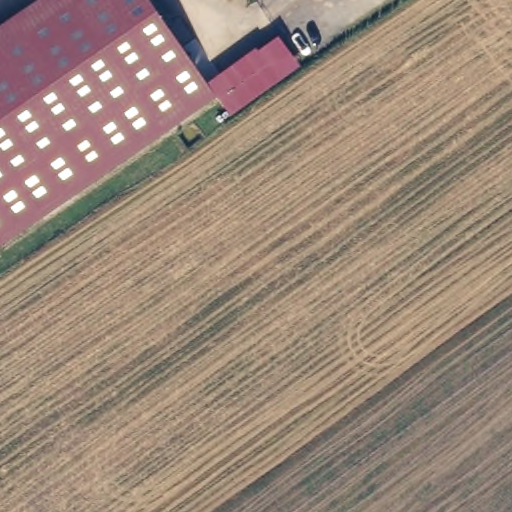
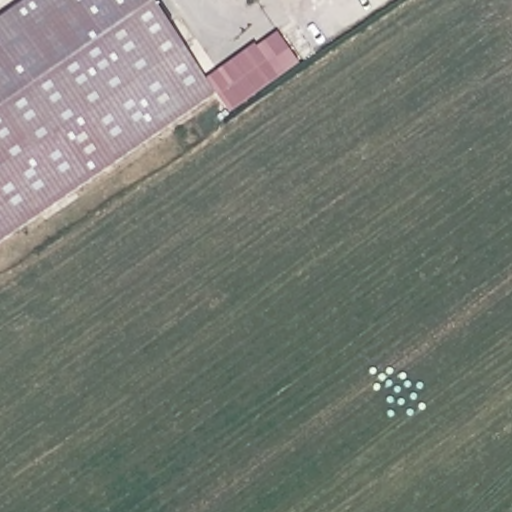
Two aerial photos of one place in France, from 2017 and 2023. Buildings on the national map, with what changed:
unchanged [(0,20),(30,0),(150,0),(215,95),(0,246),(0,20)]
unchanged [(254,46),(256,49),(277,34),(298,65),(230,115),(215,95),(209,86),(205,80),(254,46)]

